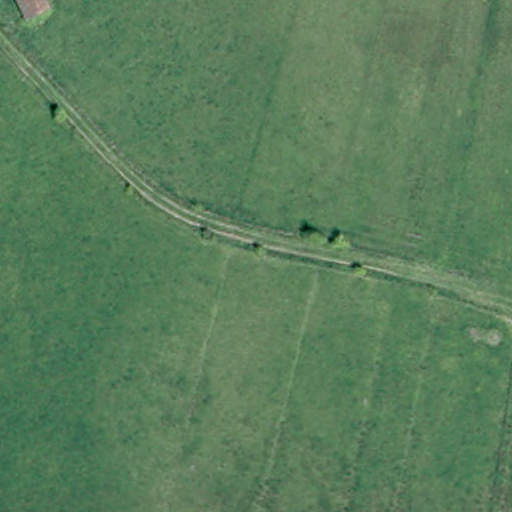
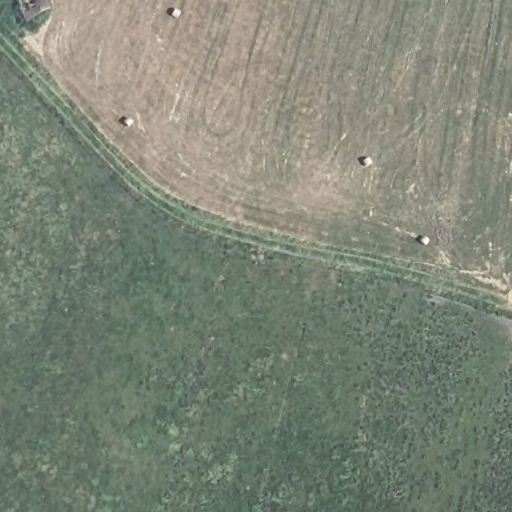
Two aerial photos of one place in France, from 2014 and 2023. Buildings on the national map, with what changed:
unchanged [(18,4),(17,0),(26,0),(18,4)]

